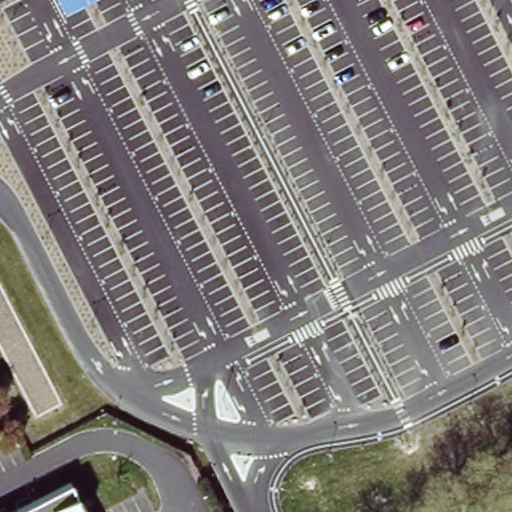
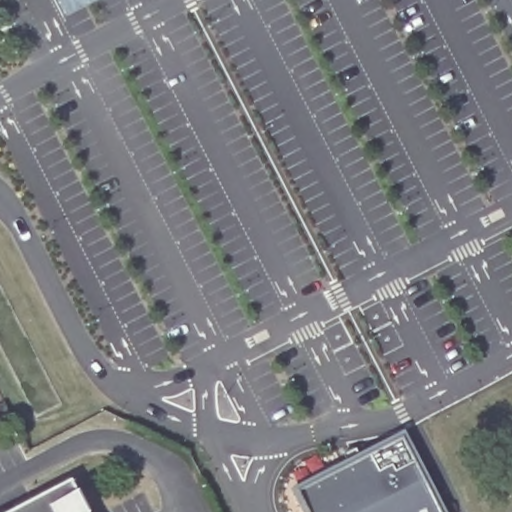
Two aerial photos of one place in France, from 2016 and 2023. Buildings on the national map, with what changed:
new [(352,464),(347,453),(359,447),(365,457),(405,436),(444,512),(311,512),(300,491),(352,464)]
unchanged [(86,512),(12,512),(70,482),(86,512)]

